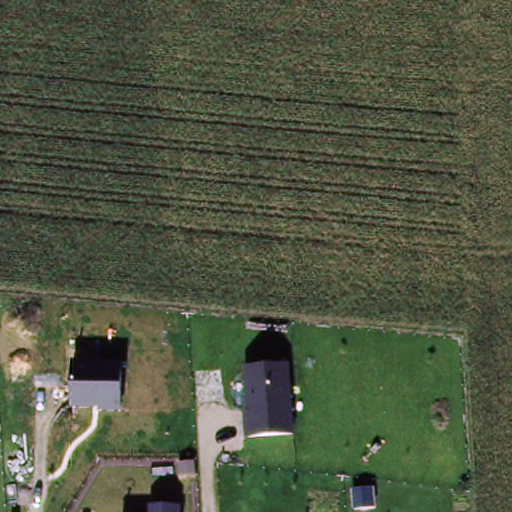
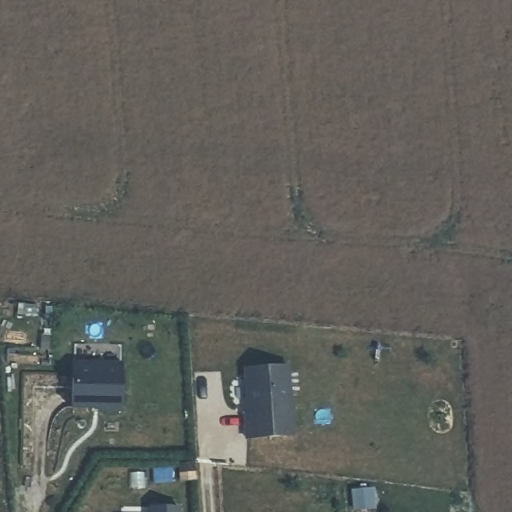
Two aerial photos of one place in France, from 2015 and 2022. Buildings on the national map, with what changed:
unchanged [(121,359),(120,406),(71,407),(71,360),(121,359)]
unchanged [(289,366),(292,443),(250,444),(245,367),(289,366)]
unchanged [(147,512),(148,506),(177,505),(177,512),(147,512)]

